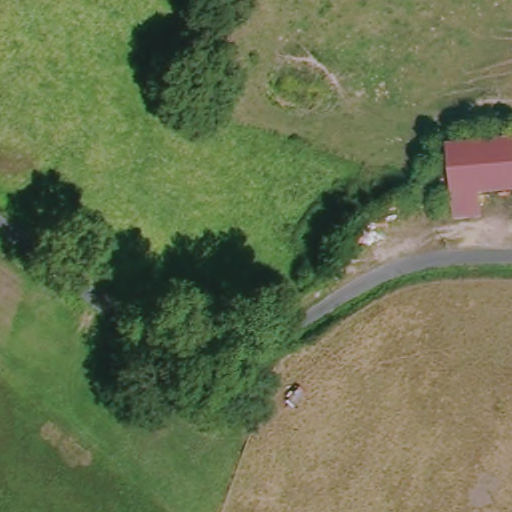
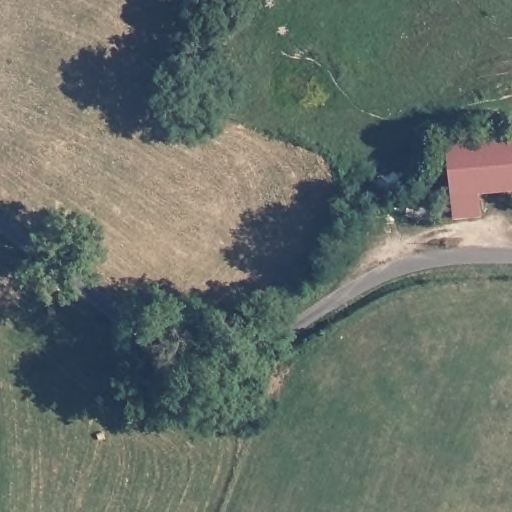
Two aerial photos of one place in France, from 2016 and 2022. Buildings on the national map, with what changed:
unchanged [(476,216),(451,216),(445,146),(512,141),(512,191),(475,193),(476,216)]

